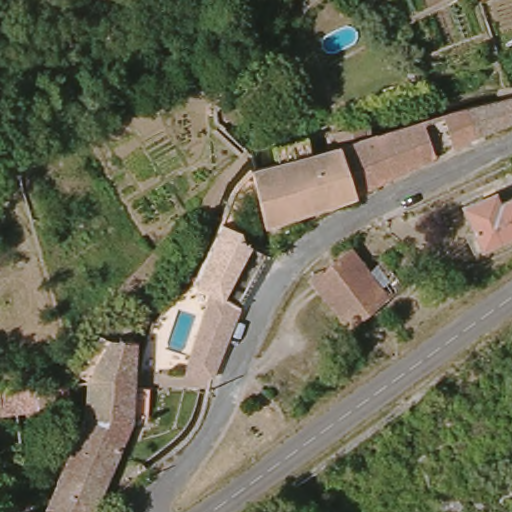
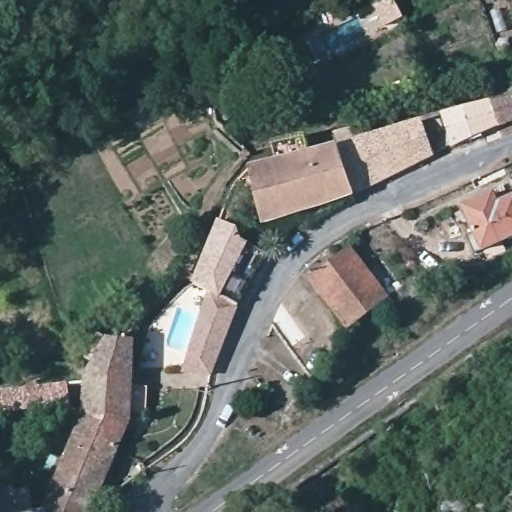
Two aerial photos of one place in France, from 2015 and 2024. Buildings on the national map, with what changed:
unchanged [(350,194),(344,195),(327,143),(324,129),(345,122),(372,114),(377,128),(455,108),(494,99),(512,95),(512,118),(502,123),(452,143),(400,169),(353,193),(350,194)]
unchanged [(327,143),(344,195),(280,216),(271,219),(269,218),(262,196),(233,194),(232,192),(238,180),(242,175),(248,170),(254,166),(268,160),(295,152),(327,143)]
unchanged [(464,240),(473,236),(462,209),(495,194),(512,186),(512,238),(471,255),(464,240)]
unchanged [(215,287),(200,277),(232,194),(232,192),(233,194),(234,199),(246,233),(253,237),(225,291),(215,287)]
unchanged [(225,291),(253,237),(259,240),(271,246),(242,299),(225,291)]
unchanged [(363,272),(383,258),(404,285),(383,299),(342,329),(303,278),(345,248),(363,272)]
unchanged [(218,367),(216,372),(208,371),(194,369),(188,369),(215,287),(225,291),(242,299),(232,329),(218,367)]
unchanged [(126,379),(138,380),(140,380),(137,406),(131,406),(130,422),(123,421),(110,450),(70,432),(78,414),(82,372),(83,372),(85,368),(93,354),(84,348),(96,327),(103,332),(129,333),(126,379)]
unchanged [(67,398),(17,410),(0,413),(0,389),(64,376),(67,398)]
unchanged [(83,512),(38,512),(38,508),(70,432),(110,450),(83,512)]
unchanged [(26,490),(28,511),(32,510),(33,512),(0,512),(0,495),(26,490)]

